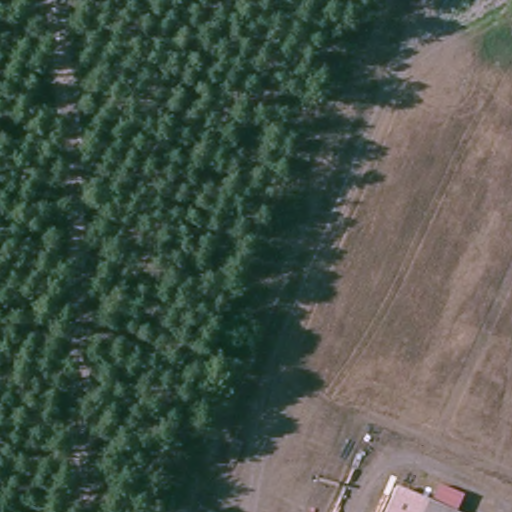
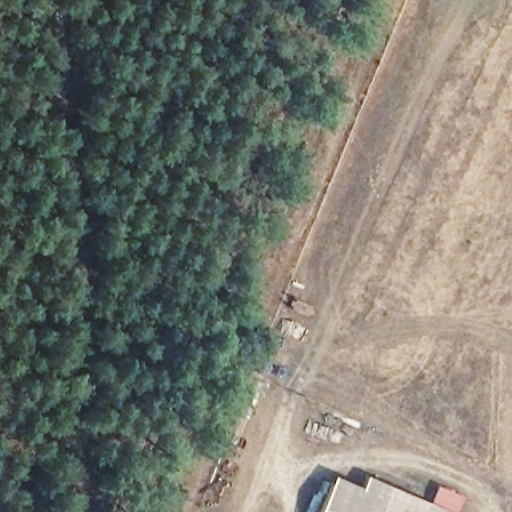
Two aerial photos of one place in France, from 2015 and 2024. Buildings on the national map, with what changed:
new [(364,490),(370,478),(395,489),(384,512),(321,512),(337,475),(364,490)]
unchanged [(439,486),(464,497),(457,512),(448,512),(433,505),(439,486)]
unchanged [(395,489),(428,503),(424,512),(384,512),(395,489)]
unchanged [(428,503),(448,512),(424,512),(428,503)]

